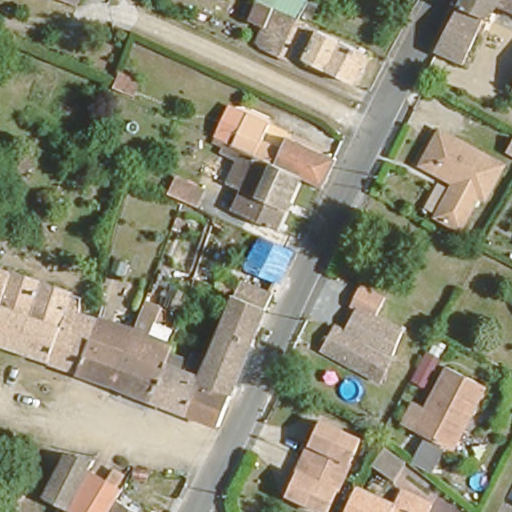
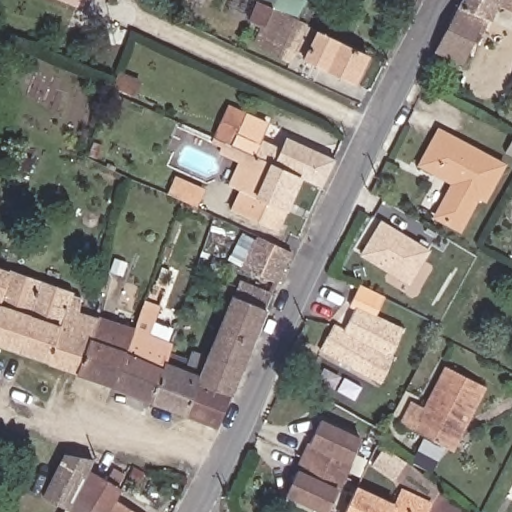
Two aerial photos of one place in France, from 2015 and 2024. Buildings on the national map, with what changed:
unchanged [(486,17),(458,5),(461,0),(512,0),(512,11),(492,3),(486,17)]
unchanged [(327,36),(367,53),(356,79),(312,60),(313,55),(301,50),(297,60),(262,46),(270,27),(251,20),(258,1),(307,20),(328,29),(327,36)]
unchanged [(462,62),(434,49),(458,5),(486,17),(462,62)]
unchanged [(289,147),(295,133),(340,154),(326,182),(308,173),(237,140),(250,113),(272,123),(266,137),(289,147)]
unchanged [(415,162),(431,128),(497,160),(480,195),(467,189),(465,195),(469,197),(456,225),(430,212),(444,184),(447,177),(415,162)]
unchanged [(237,204),(244,186),(232,181),(223,177),(234,152),(227,149),(232,137),(237,140),(308,173),(281,223),(237,204)]
unchanged [(19,173),(22,163),(34,167),(30,177),(19,173)]
unchanged [(187,205),(182,202),(190,185),(216,196),(208,214),(187,205)]
new [(382,224),(430,252),(410,285),(362,257),(382,224)]
unchanged [(244,264),(258,230),(290,244),(276,276),(244,264)]
unchanged [(96,308),(76,368),(72,366),(0,342),(0,260),(85,288),(82,304),(96,308)]
unchanged [(234,287),(217,281),(220,275),(236,281),(234,287)]
unchanged [(237,293),(239,289),(244,277),(276,288),(268,304),(255,337),(223,326),(237,293)]
unchanged [(321,354),(330,330),(344,336),(353,309),(347,306),(355,285),(378,294),(368,316),(405,332),(382,383),(321,354)]
unchanged [(76,368),(96,308),(135,321),(112,380),(76,368)]
unchanged [(152,395),(146,393),(112,380),(135,321),(174,334),(167,356),(152,395)]
unchanged [(152,395),(167,356),(191,364),(194,353),(210,358),(214,348),(223,326),(255,337),(231,389),(217,418),(189,408),(152,395)]
unchanged [(486,378),(449,444),(400,428),(411,397),(422,403),(447,365),(486,378)]
unchanged [(286,488),(321,412),(363,432),(328,507),(286,488)]
unchanged [(67,509),(51,498),(67,459),(92,463),(89,470),(67,509)]
unchanged [(71,512),(67,509),(89,470),(124,492),(117,503),(111,512),(71,512)]
unchanged [(398,503),(405,490),(435,503),(430,512),(348,512),(360,486),(398,503)]
unchanged [(131,512),(111,512),(117,503),(131,512)]
unchanged [(71,512),(65,512),(67,509),(71,512)]

